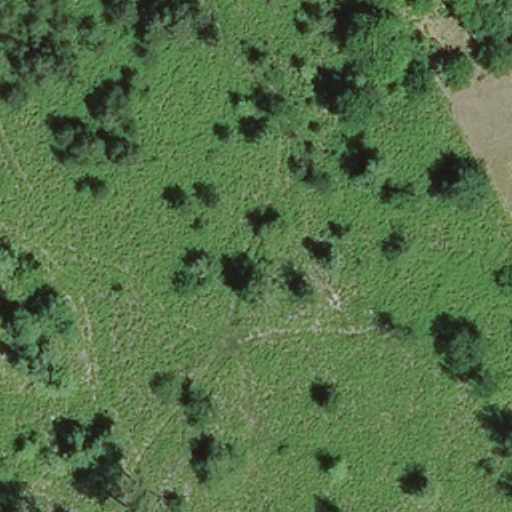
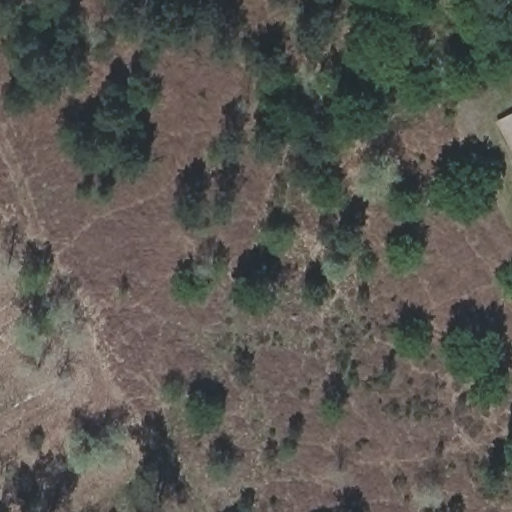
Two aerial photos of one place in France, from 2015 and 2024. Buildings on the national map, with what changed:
new [(494,121),(512,112),(512,157),(494,121)]

